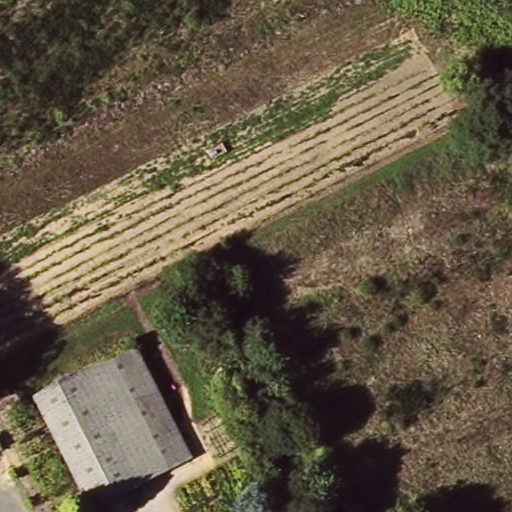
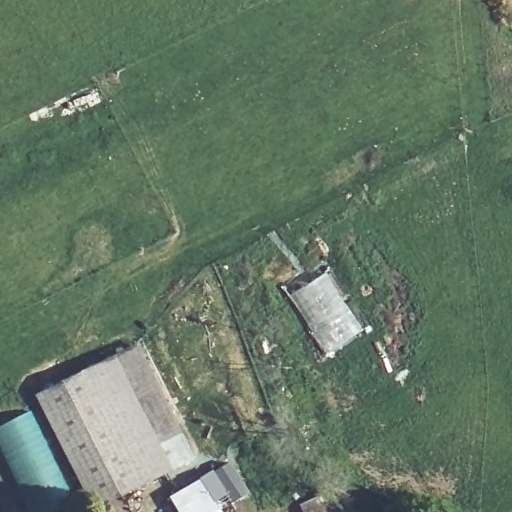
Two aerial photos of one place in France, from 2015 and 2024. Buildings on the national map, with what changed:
new [(327,271),(364,332),(327,358),(289,295),(327,271)]
unchanged [(89,507),(42,395),(143,349),(192,461),(89,507)]
new [(71,505),(55,512),(22,512),(0,466),(0,427),(27,414),(71,505)]
new [(226,465),(244,495),(227,505),(209,475),(226,465)]
new [(216,512),(174,512),(166,499),(197,481),(216,512)]
new [(331,495),(338,512),(299,512),(297,507),(331,495)]

